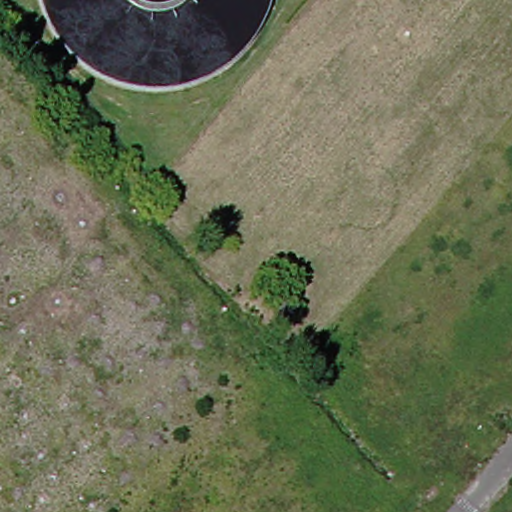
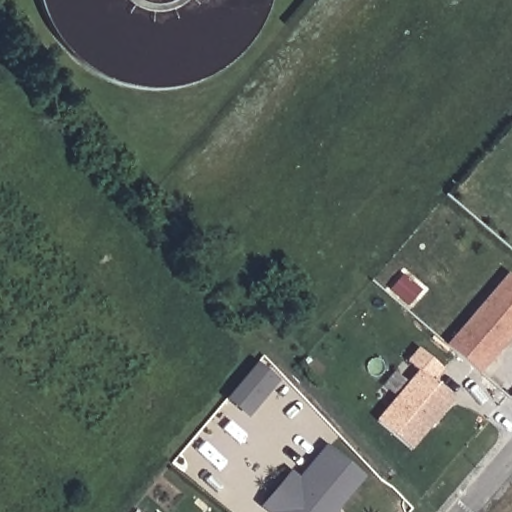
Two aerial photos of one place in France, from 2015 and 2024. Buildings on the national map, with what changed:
new [(448,343),(509,272),(512,275),(512,336),(480,372),(448,343)]
unchanged [(286,320),(279,313),(292,299),(299,306),(286,320)]
new [(248,408),(234,396),(262,363),(282,379),(260,405),(253,413),(248,408)]
new [(411,449),(376,420),(419,370),(452,400),(411,449)]
new [(340,512),(275,512),(268,506),(295,474),(303,481),(332,447),(367,476),(347,498),(339,508),(340,512)]

